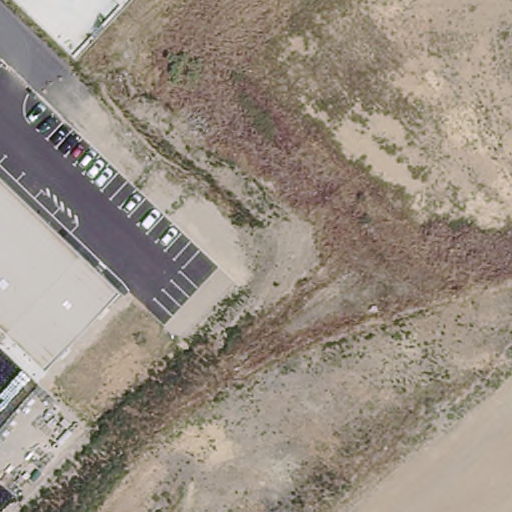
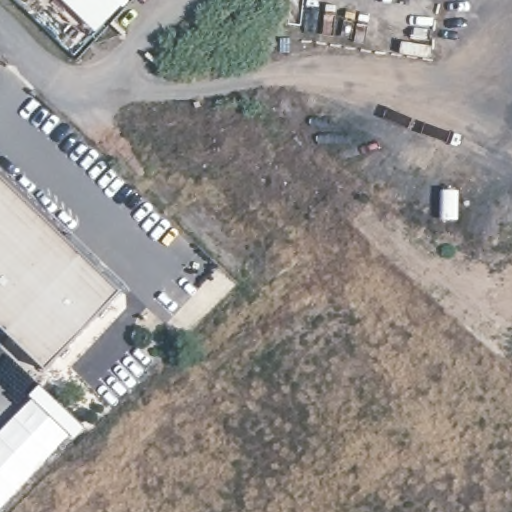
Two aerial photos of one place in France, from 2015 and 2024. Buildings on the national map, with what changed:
new [(61,0),(128,0),(95,32),(61,0)]
unchanged [(45,368),(0,326),(0,176),(121,292),(45,368)]
new [(70,435),(0,511),(0,434),(32,400),(70,435)]

